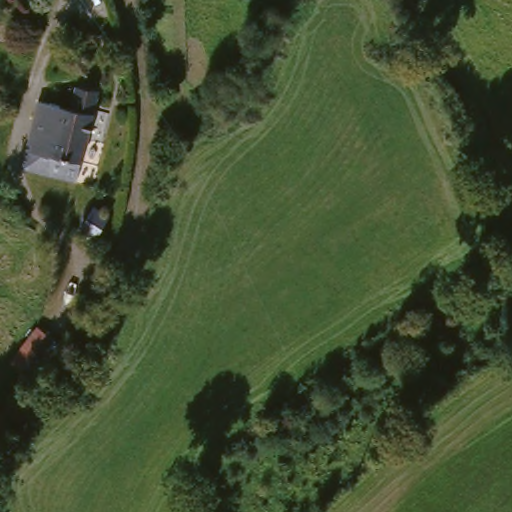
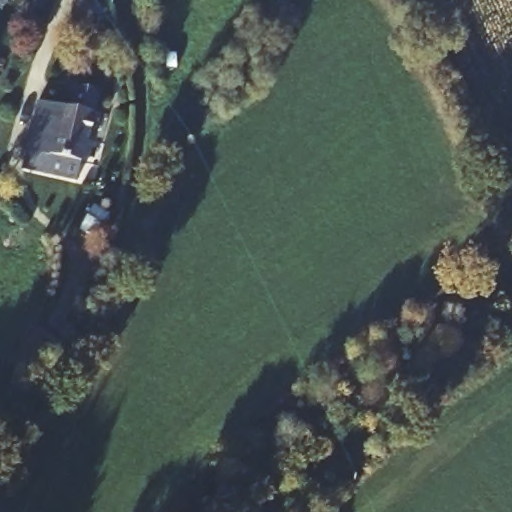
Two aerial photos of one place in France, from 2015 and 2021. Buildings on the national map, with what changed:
unchanged [(27,150),(39,96),(78,103),(82,85),(103,89),(90,161),(88,161),(83,181),(50,175),(23,169),(27,150)]
unchanged [(68,347),(41,382),(15,361),(40,325),(68,347)]

